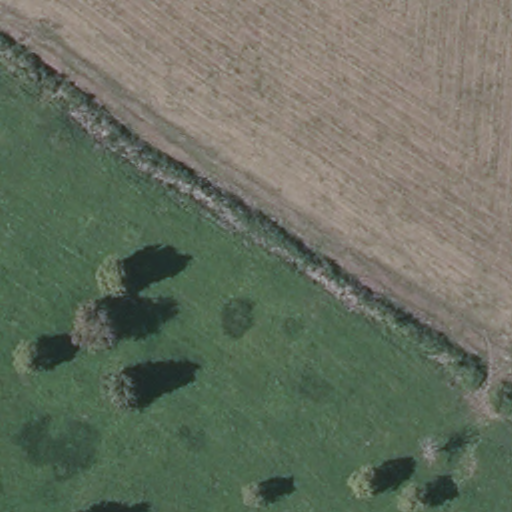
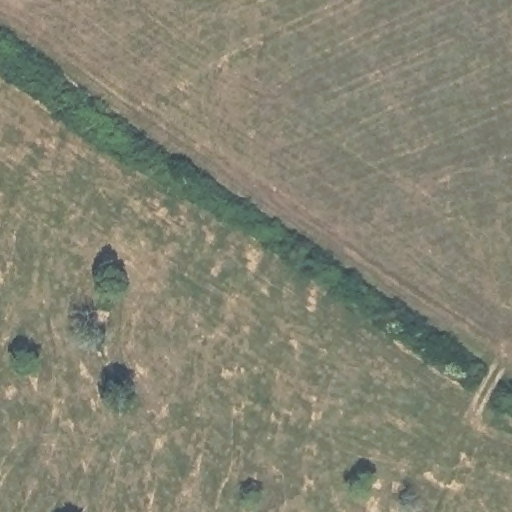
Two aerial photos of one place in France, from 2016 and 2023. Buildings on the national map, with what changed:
[]

